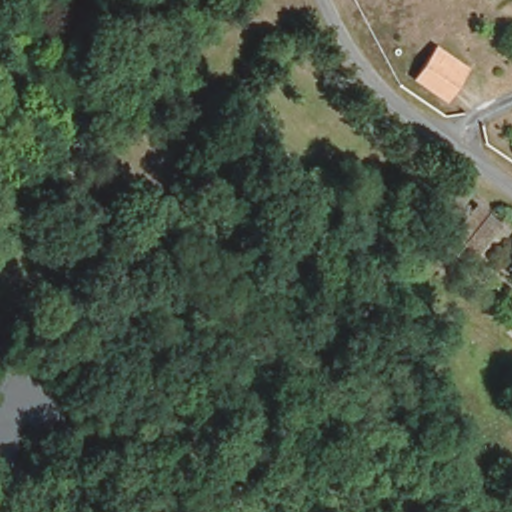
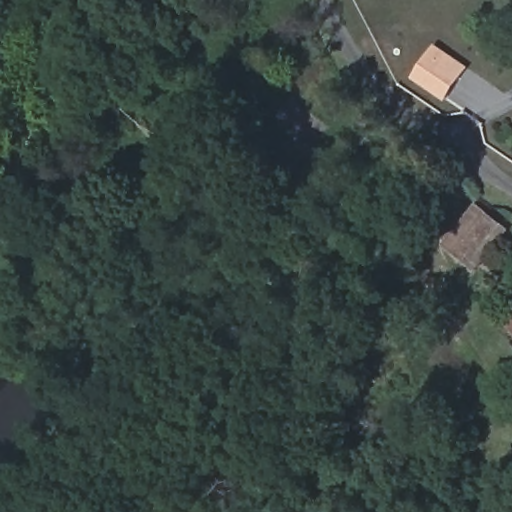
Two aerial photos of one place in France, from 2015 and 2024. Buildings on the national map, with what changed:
unchanged [(410,80),(427,56),(435,46),(464,68),(458,75),(441,100),(410,80)]
unchanged [(512,230),(512,233),(480,282),(438,248),(476,202),(512,230)]
unchanged [(508,320),(512,316),(512,324),(508,320)]

